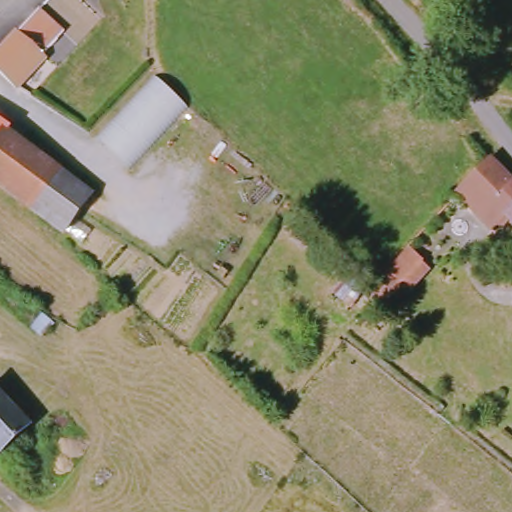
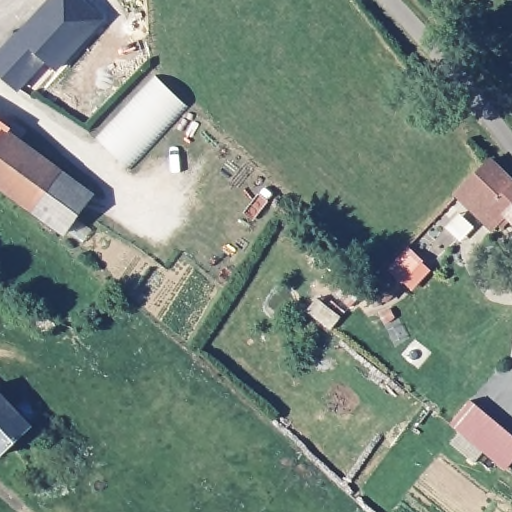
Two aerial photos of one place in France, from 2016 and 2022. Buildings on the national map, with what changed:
unchanged [(16,86),(0,72),(0,53),(48,0),(74,0),(84,9),(16,86)]
unchanged [(160,80),(188,107),(129,168),(101,142),(160,80)]
unchanged [(57,240),(0,195),(0,141),(11,126),(18,117),(32,128),(25,137),(34,144),(95,192),(57,240)]
unchanged [(11,126),(0,141),(0,120),(11,126)]
unchanged [(500,216),(465,180),(491,157),(512,186),(512,217),(506,211),(500,216)]
unchanged [(363,286),(401,247),(424,269),(407,289),(400,281),(381,304),(363,286)]
unchanged [(25,426),(0,448),(0,399),(25,426)]
new [(512,435),(512,463),(506,470),(450,424),(471,401),(512,435)]

